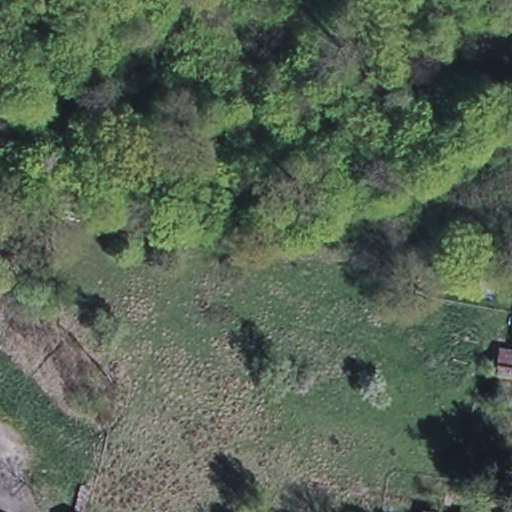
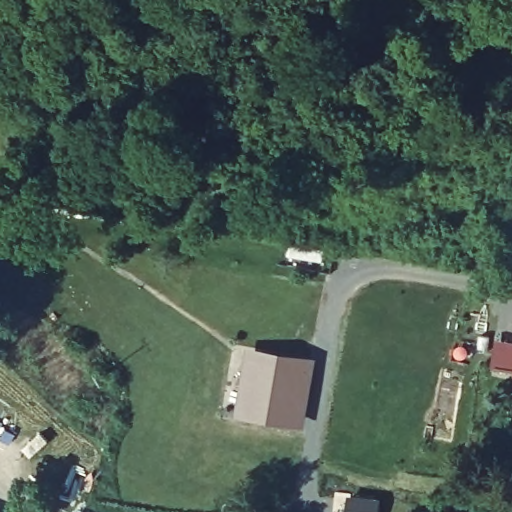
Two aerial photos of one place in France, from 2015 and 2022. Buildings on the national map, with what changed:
new [(253,355),(310,364),(310,370),(302,422),(244,414),(252,361),(253,355)]
unchanged [(512,357),(512,373),(497,370),(498,355),(512,357)]

